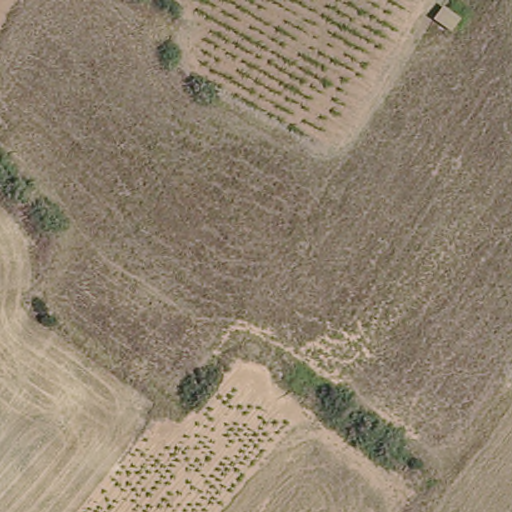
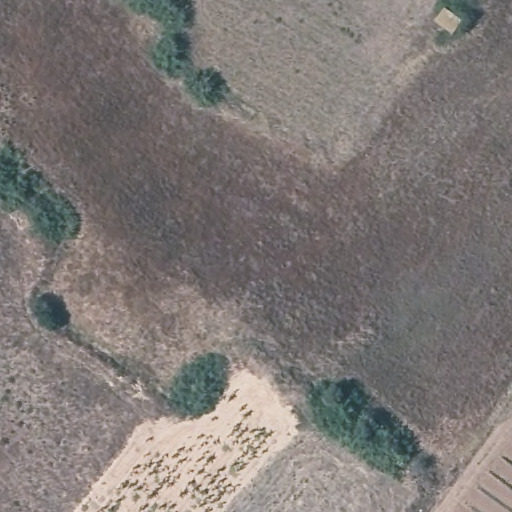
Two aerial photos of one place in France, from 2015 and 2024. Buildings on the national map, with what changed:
unchanged [(443,10),(460,22),(451,36),(435,24),(443,10)]

